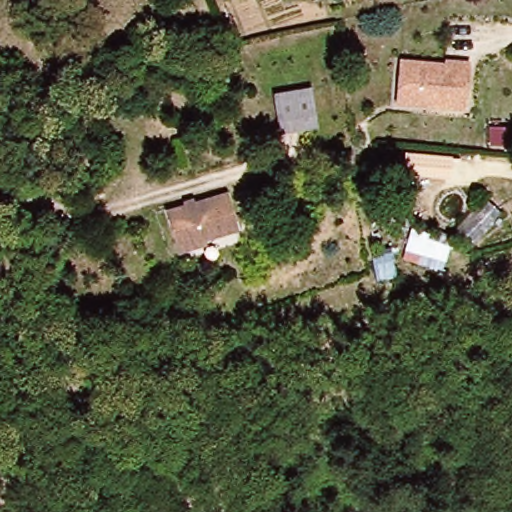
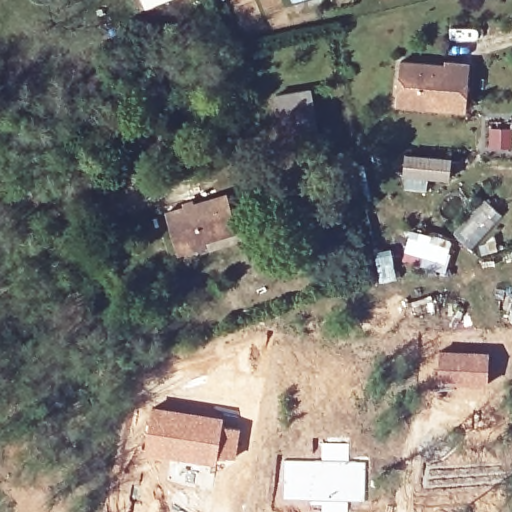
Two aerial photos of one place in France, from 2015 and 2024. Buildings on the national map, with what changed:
unchanged [(397,59),(467,64),(464,108),(395,103),(397,59)]
unchanged [(273,97),(310,94),(315,135),(278,138),(273,97)]
unchanged [(472,248),(452,229),(484,193),(505,214),(472,248)]
unchanged [(175,253),(167,218),(230,203),(237,238),(175,253)]
new [(402,263),(408,231),(451,239),(445,271),(402,263)]
unchanged [(393,251),(397,282),(375,286),(371,253),(393,251)]
new [(436,350),(489,351),(487,386),(435,386),(436,350)]
new [(151,406),(224,417),(223,424),(240,427),(234,461),(216,458),(215,466),(142,455),(151,406)]
new [(318,459),(318,437),(350,438),(350,459),(367,459),(365,501),(348,501),(348,512),(320,512),(320,503),(279,500),(281,458),(318,459)]

